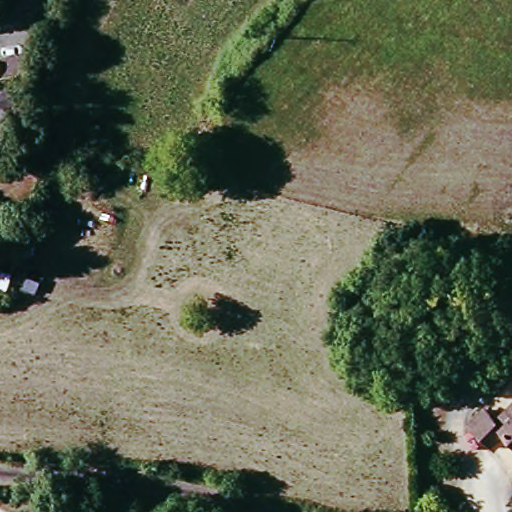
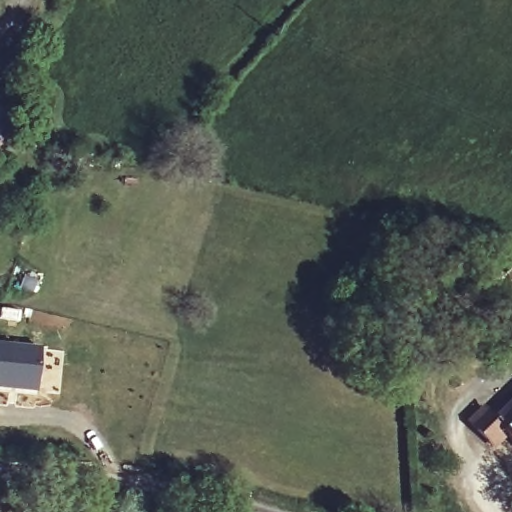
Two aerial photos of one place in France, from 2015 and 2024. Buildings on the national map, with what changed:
unchanged [(0,138),(0,118),(9,134),(0,138)]
new [(37,393),(0,388),(0,341),(42,347),(37,393)]
unchanged [(502,436),(487,448),(462,422),(478,408),(489,420),(512,400),(512,446),(502,436)]

